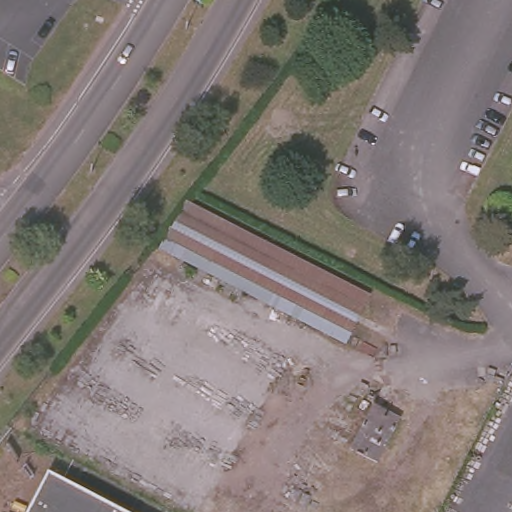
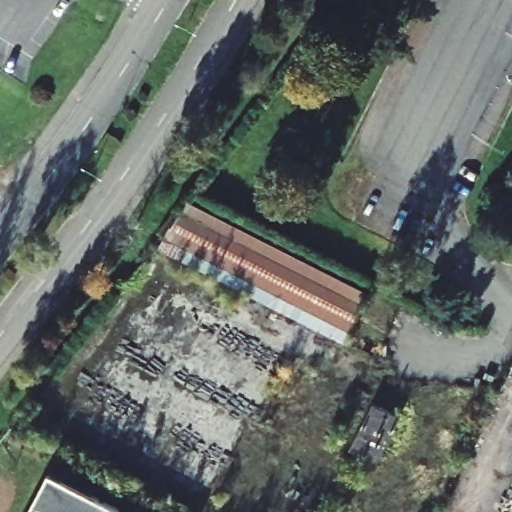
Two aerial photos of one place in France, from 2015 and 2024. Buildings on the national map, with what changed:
unchanged [(375,365),(157,251),(183,200),(398,310),(375,365)]
unchanged [(379,466),(347,447),(370,402),(398,415),(379,466)]
unchanged [(130,512),(25,512),(40,482),(52,488),(60,475),(130,512)]

